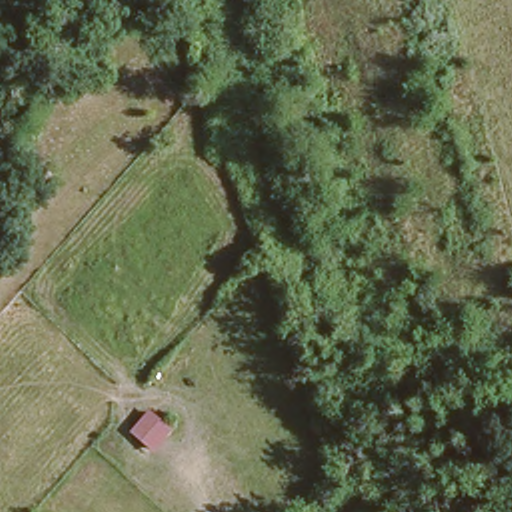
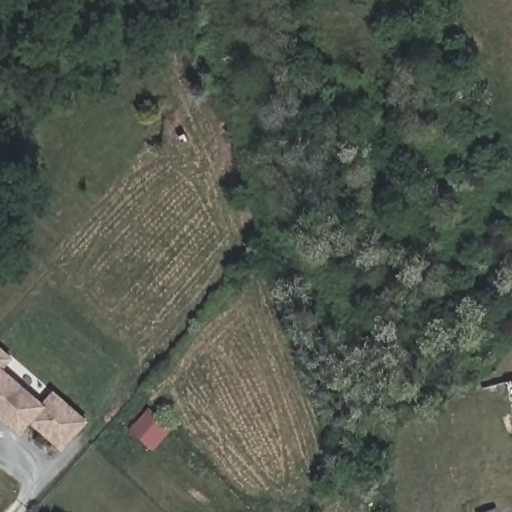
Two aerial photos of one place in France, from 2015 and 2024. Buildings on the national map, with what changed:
new [(14,356),(4,369),(42,401),(53,389),(89,420),(62,451),(31,424),(21,434),(0,417),(0,345),(14,356)]
unchanged [(152,455),(141,445),(155,430),(166,440),(152,455)]

